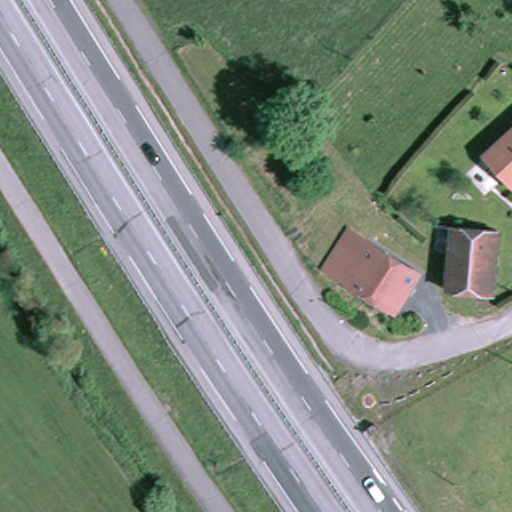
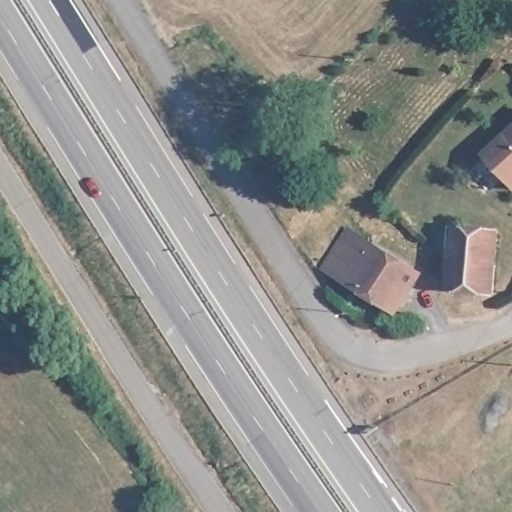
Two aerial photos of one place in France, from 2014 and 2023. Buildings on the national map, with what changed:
unchanged [(512,138),(512,185),(488,161),(512,138)]
unchanged [(454,297),(458,261),(438,258),(442,231),(499,237),(505,238),(497,301),(454,297)]
unchanged [(402,316),(335,277),(342,264),(344,265),(358,240),(423,279),(402,316)]

